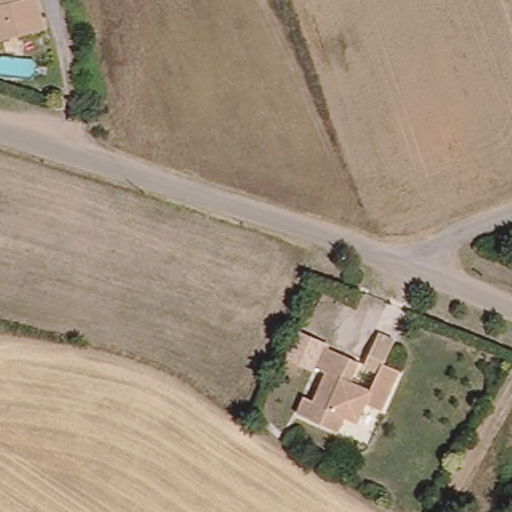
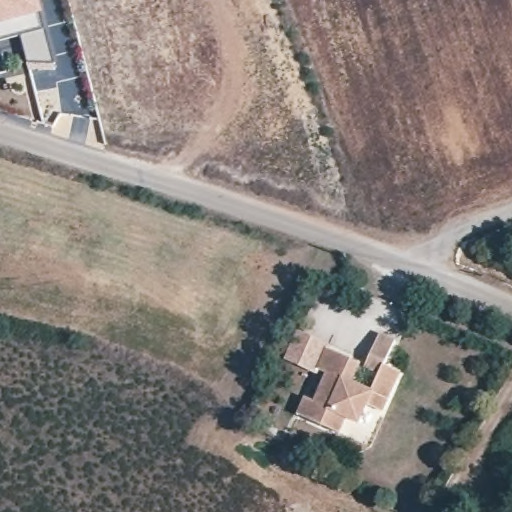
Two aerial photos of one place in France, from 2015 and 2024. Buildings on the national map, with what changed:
unchanged [(5,38),(0,19),(0,0),(47,0),(54,25),(5,38)]
unchanged [(386,361),(403,369),(385,408),(370,401),(363,417),(350,412),(343,427),(301,407),(310,392),(318,394),(329,370),(321,366),(318,372),(291,359),(304,332),(331,344),(362,359),(355,380),(374,388),(383,369),(368,361),(382,330),(397,337),(386,361)]

